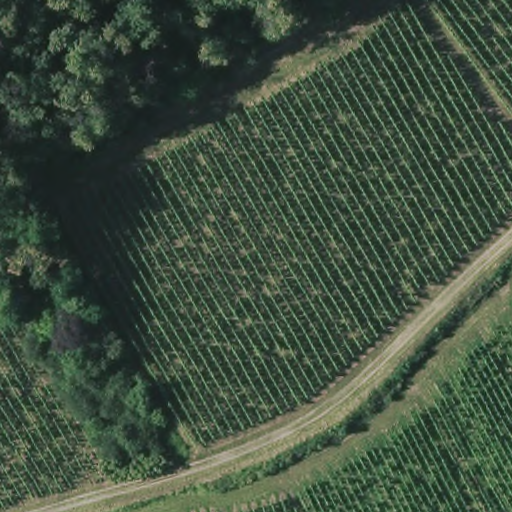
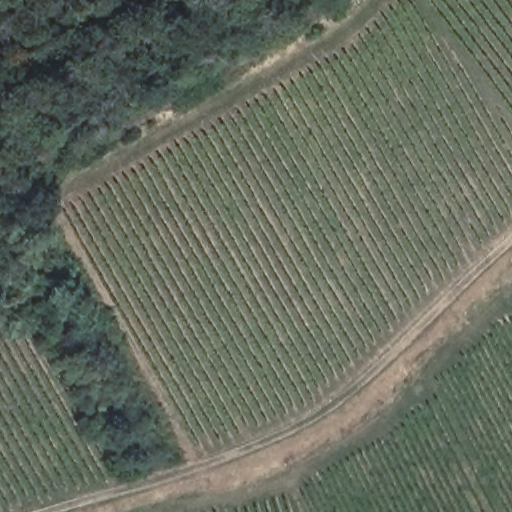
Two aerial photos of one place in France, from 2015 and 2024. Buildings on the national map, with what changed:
unchanged [(76,295),(61,304),(55,294),(52,296),(45,285),(64,274),(76,295)]

